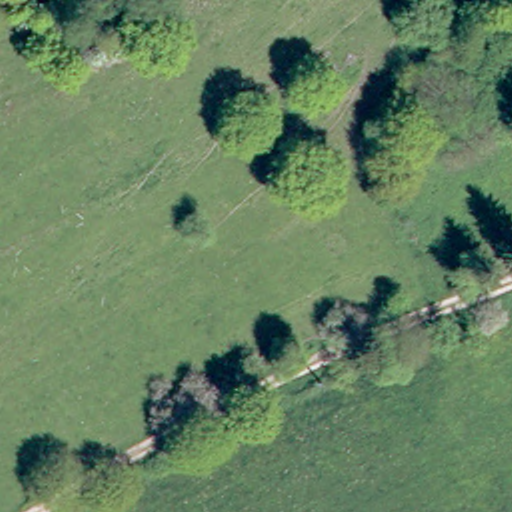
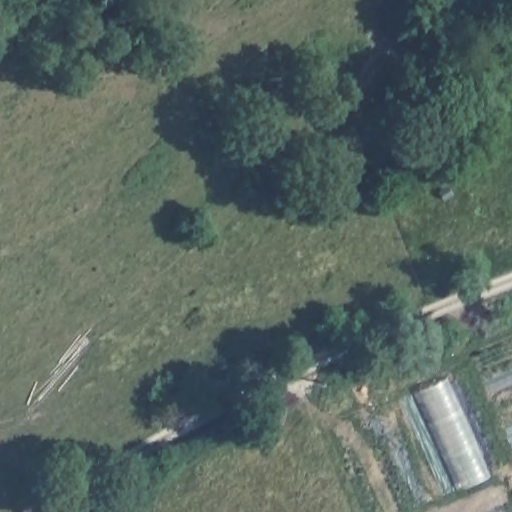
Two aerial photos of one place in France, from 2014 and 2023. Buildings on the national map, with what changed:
new [(415,392),(445,380),(488,478),(457,490),(415,392)]

